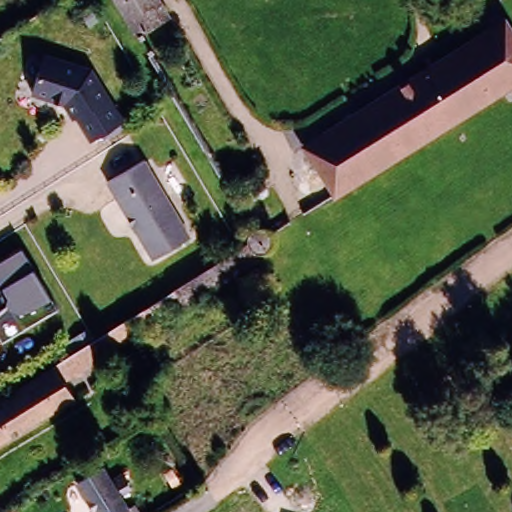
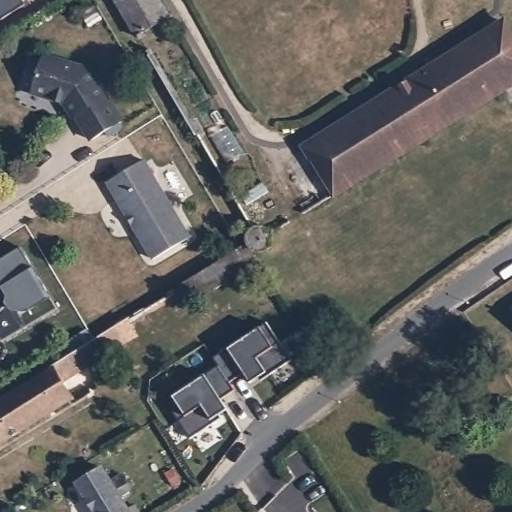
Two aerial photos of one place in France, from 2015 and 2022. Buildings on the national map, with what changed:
unchanged [(176,19),(145,37),(135,19),(123,0),(165,0),(176,19)]
unchanged [(295,147),(502,19),(512,35),(512,87),(330,199),(295,147)]
unchanged [(45,54),(92,69),(122,121),(91,140),(77,115),(74,117),(65,103),(32,92),(45,54)]
unchanged [(140,165),(187,240),(151,263),(104,187),(140,165)]
unchanged [(192,279),(247,246),(247,245),(246,241),(246,238),(246,235),(247,235),(247,232),(249,230),(250,229),(252,228),(253,227),(255,226),(260,225),(262,226),(263,226),(266,228),(270,231),(270,236),(272,240),(271,241),(270,244),(269,247),(265,249),(261,250),(258,251),(255,250),(254,250),(259,259),(202,294),(192,279)]
unchanged [(54,313),(0,345),(0,310),(4,308),(2,306),(4,300),(0,293),(0,264),(18,253),(54,313)]
unchanged [(127,319),(170,292),(192,279),(202,294),(158,321),(137,334),(127,319)]
new [(512,311),(512,315),(510,312),(512,311)]
unchanged [(39,375),(55,365),(77,351),(100,337),(100,336),(127,319),(137,334),(64,380),(74,396),(57,405),(6,437),(0,441),(0,398),(32,379),(39,375)]
new [(261,379),(259,376),(250,382),(244,371),(229,380),(235,390),(222,401),(226,408),(219,414),(220,417),(220,418),(190,438),(165,401),(174,396),(204,376),(220,364),(215,356),(229,348),(260,328),(267,323),(290,359),(261,379)]
unchanged [(96,458),(105,472),(116,465),(126,482),(115,489),(124,503),(129,512),(94,512),(70,474),(96,458)]

